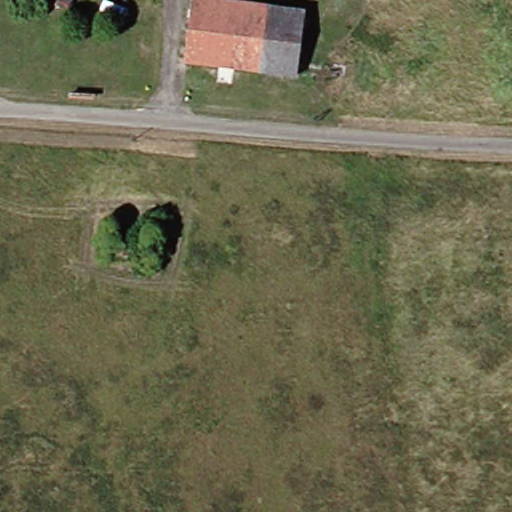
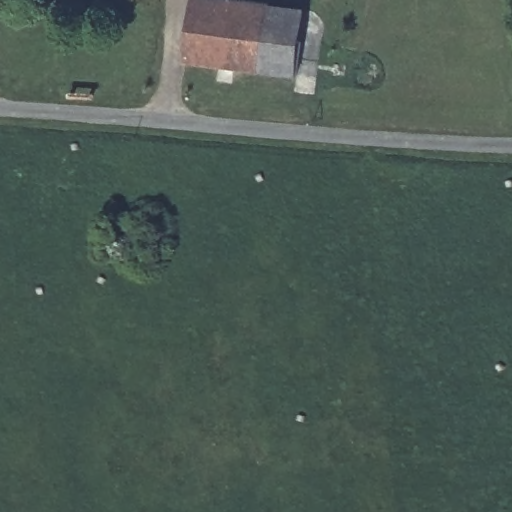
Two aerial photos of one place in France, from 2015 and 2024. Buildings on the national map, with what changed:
unchanged [(236,67),(233,85),(222,84),(224,65),(186,61),(194,0),(242,0),(270,3),(261,70),(236,67)]
unchanged [(288,73),(261,70),(270,3),(296,5),(288,73)]
unchanged [(296,5),(312,7),(303,75),(288,73),(296,5)]
unchanged [(102,261),(105,231),(152,236),(150,267),(102,261)]

